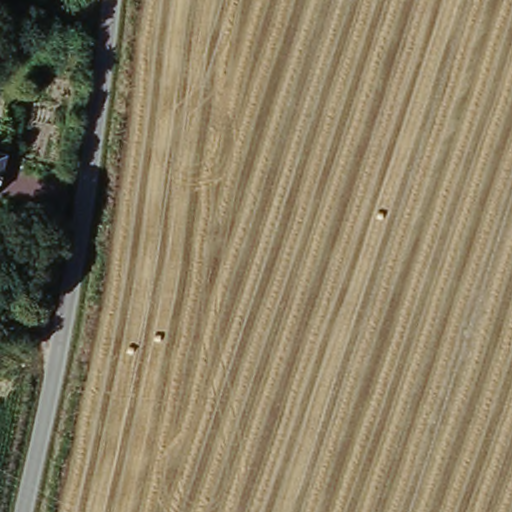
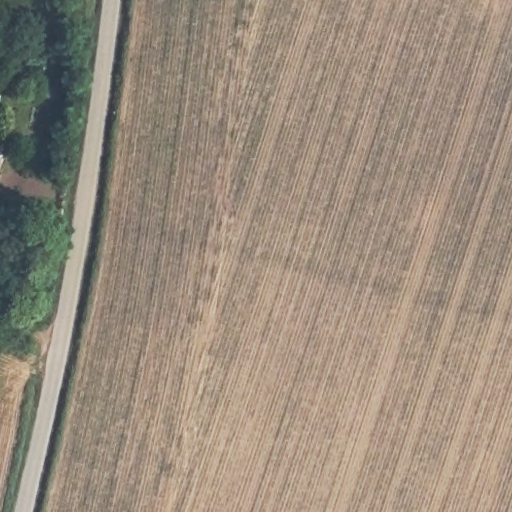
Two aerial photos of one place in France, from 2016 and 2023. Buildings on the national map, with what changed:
unchanged [(4,153),(0,168),(0,152),(4,153)]

